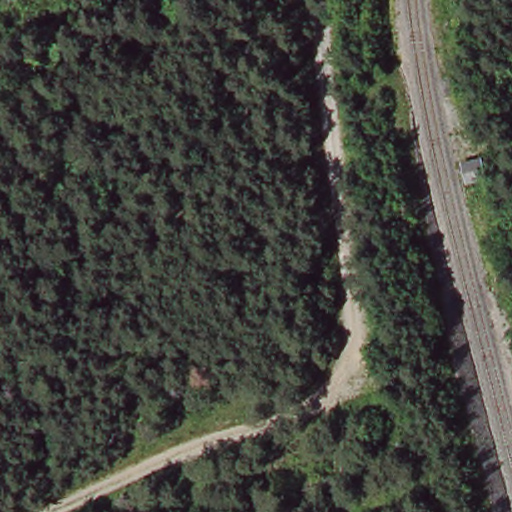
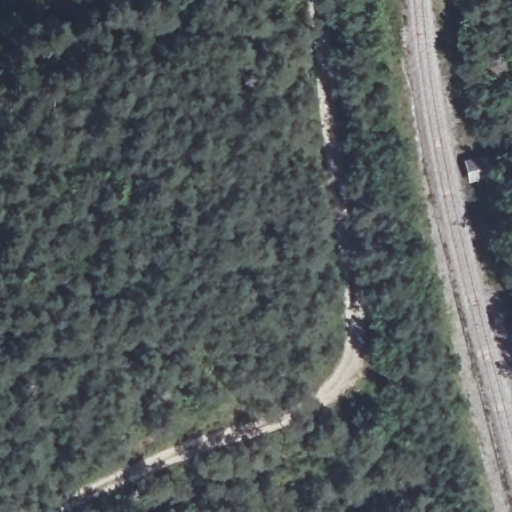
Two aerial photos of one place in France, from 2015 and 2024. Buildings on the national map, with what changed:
unchanged [(460,161),(484,153),(494,179),(470,186),(460,161)]

